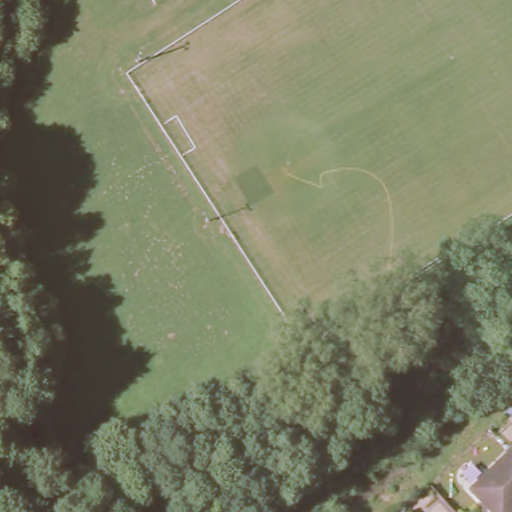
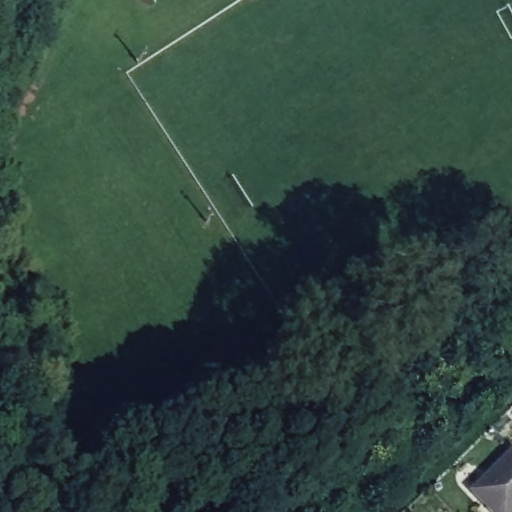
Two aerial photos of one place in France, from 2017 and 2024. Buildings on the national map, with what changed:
unchanged [(512,451),(512,512),(490,512),(470,492),(511,450),(512,451)]

